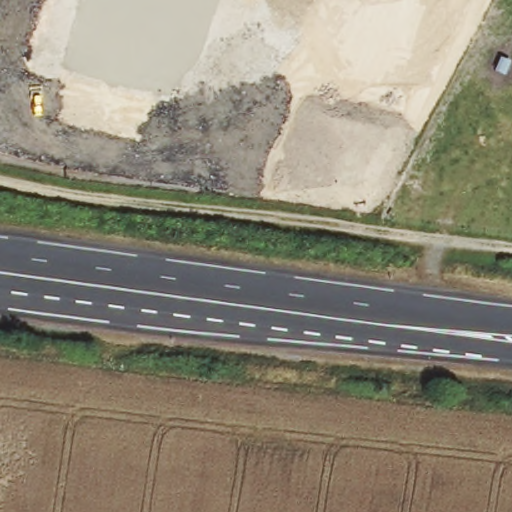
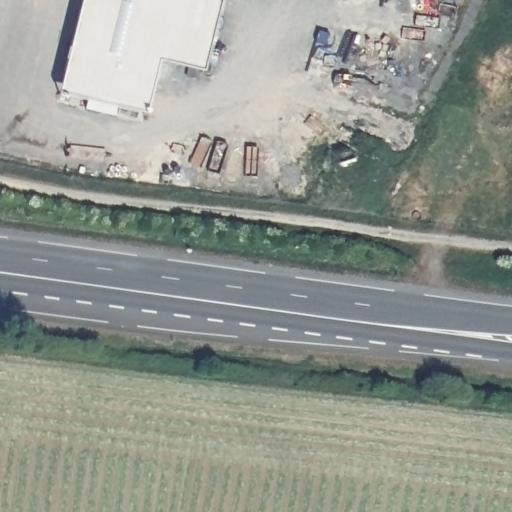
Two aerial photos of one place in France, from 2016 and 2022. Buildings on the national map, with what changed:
new [(156,62),(144,113),(59,92),(81,0),(219,0),(201,72),(156,62)]

